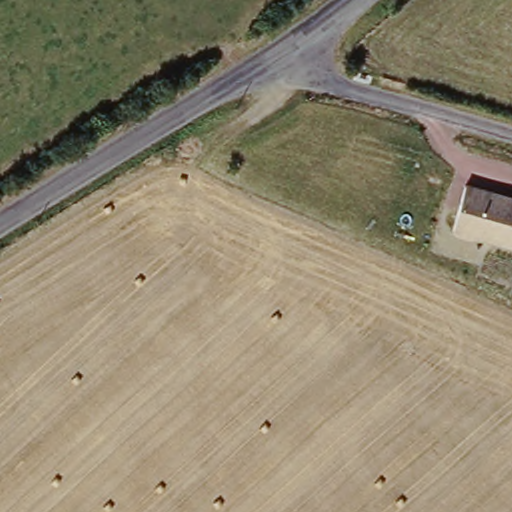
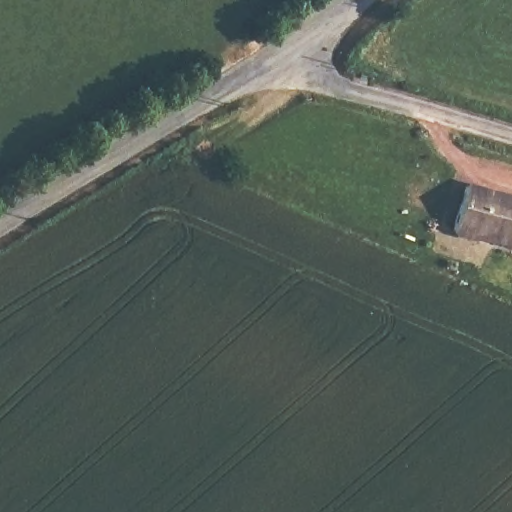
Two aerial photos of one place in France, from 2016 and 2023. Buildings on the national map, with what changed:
unchanged [(512,195),(512,249),(452,232),(467,182),(512,195)]

